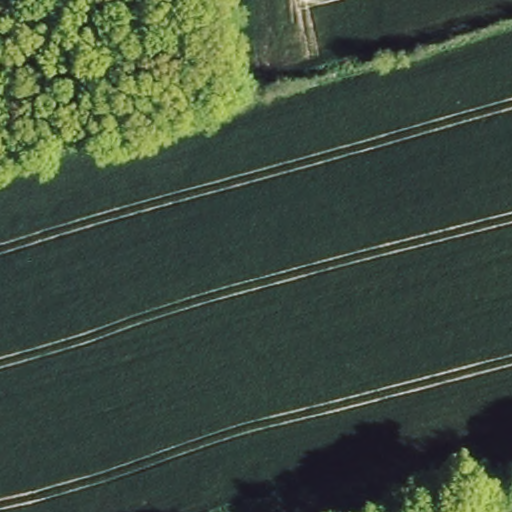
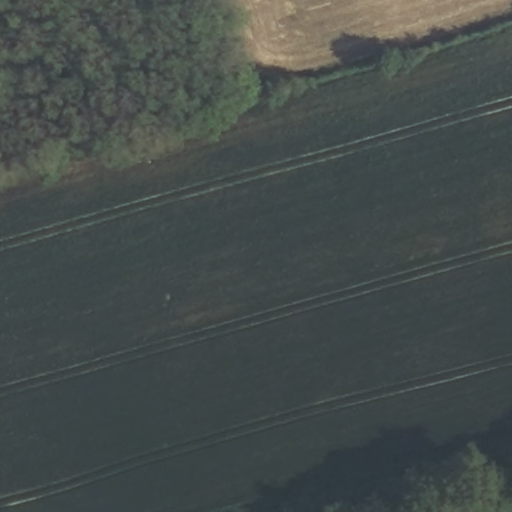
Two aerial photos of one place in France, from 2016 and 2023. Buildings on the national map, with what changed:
[]

